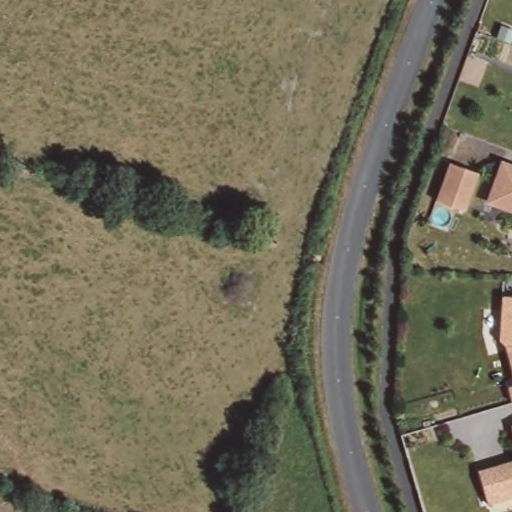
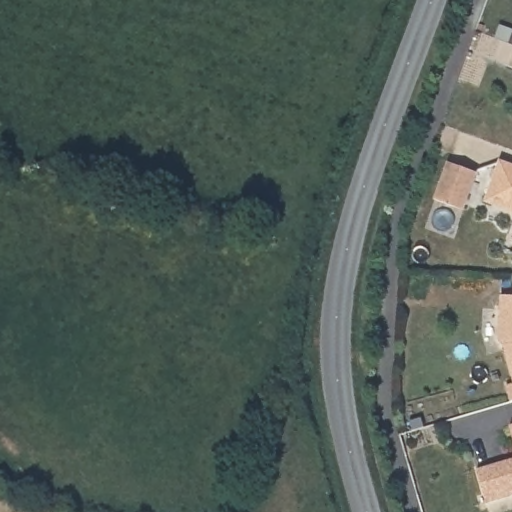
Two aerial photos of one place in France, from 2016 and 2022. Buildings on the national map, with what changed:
unchanged [(462,211),(434,200),(447,163),(476,173),(462,211)]
unchanged [(487,206),(500,169),(512,173),(512,215),(487,206)]
unchanged [(503,347),(497,341),(499,297),(512,298),(512,381),(503,347)]
unchanged [(510,426),(512,426),(512,435),(510,426)]
unchanged [(486,505),(476,471),(512,460),(512,497),(486,505)]

